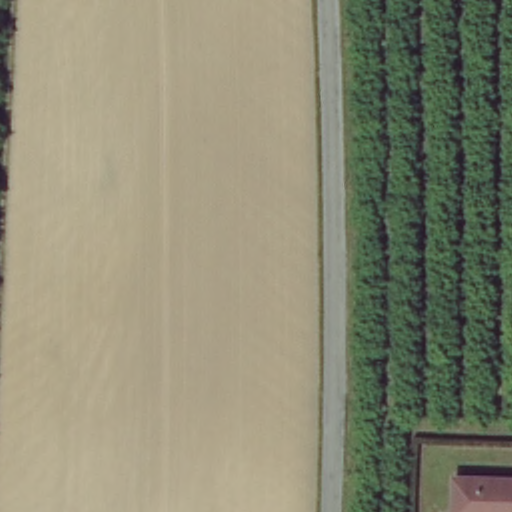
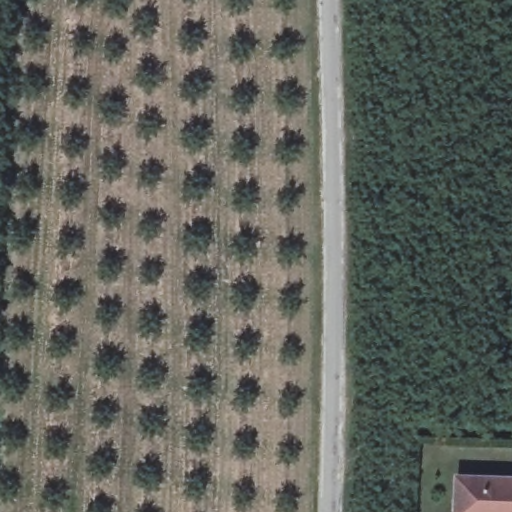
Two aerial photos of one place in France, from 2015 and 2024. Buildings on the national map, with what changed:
unchanged [(455,473),(512,475),(512,512),(497,512),(455,510),(455,473)]

